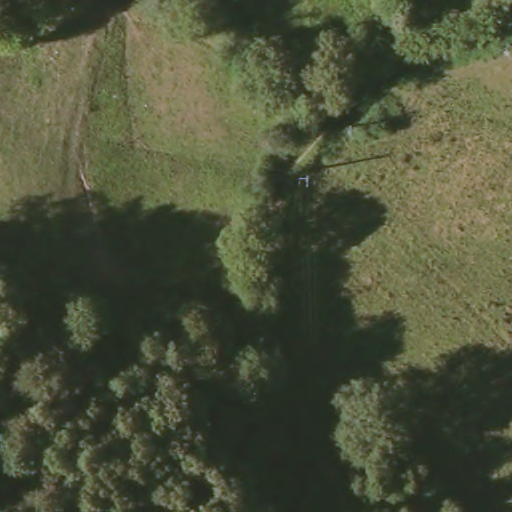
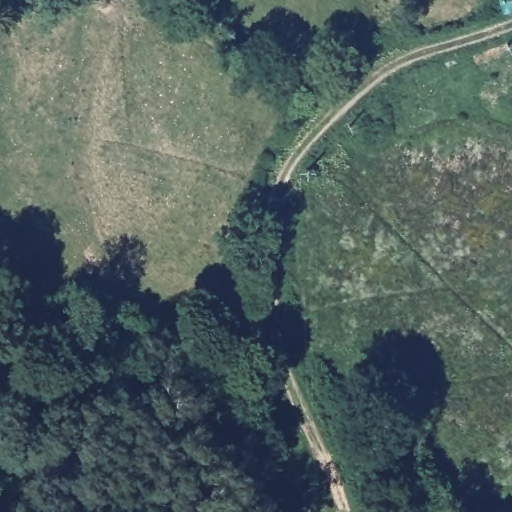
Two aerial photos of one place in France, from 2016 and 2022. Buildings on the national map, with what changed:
[]

